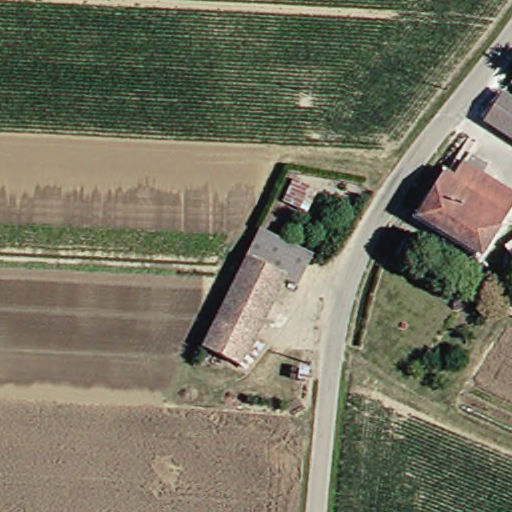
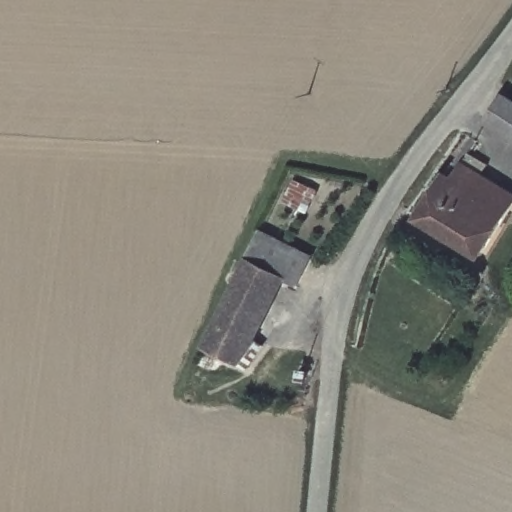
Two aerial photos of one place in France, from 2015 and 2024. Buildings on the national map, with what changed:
unchanged [(512,127),(512,135),(508,133),(512,127)]
unchanged [(512,186),(512,207),(465,174),(474,159),(512,186)]
unchanged [(512,210),(488,249),(428,213),(457,170),(465,174),(512,207),(512,210)]
unchanged [(266,227),(317,249),(308,278),(290,275),(282,294),(245,276),(266,227)]
unchanged [(266,332),(232,314),(239,293),(245,276),(282,294),(273,312),(266,332)]
unchanged [(266,332),(271,336),(259,364),(220,350),(232,314),(266,332)]

